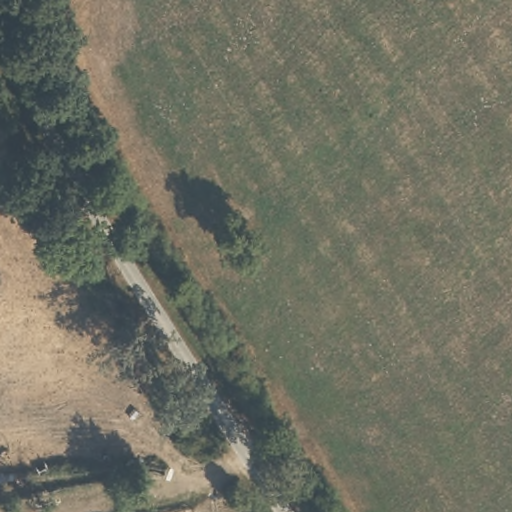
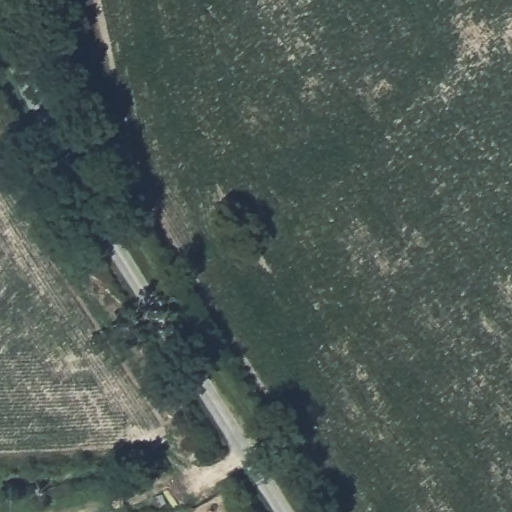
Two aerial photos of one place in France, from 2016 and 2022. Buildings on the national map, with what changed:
[]

